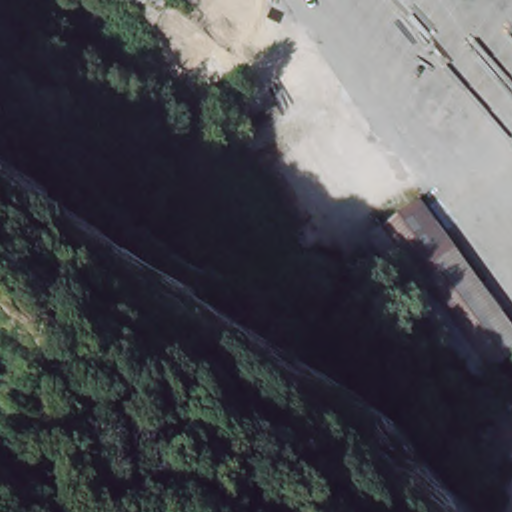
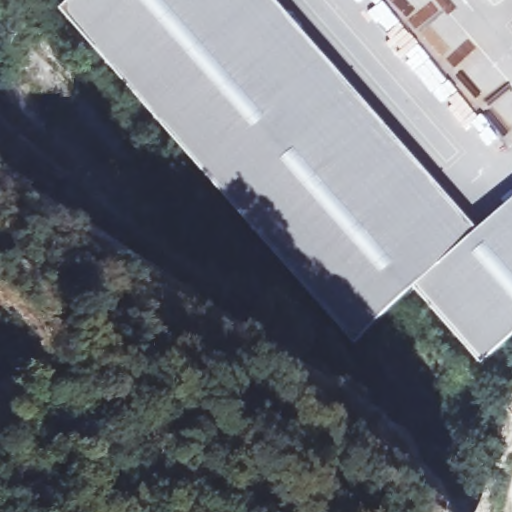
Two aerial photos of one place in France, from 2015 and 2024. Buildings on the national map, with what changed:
new [(60,9),(70,0),(274,0),(478,232),(512,202),(512,339),(482,366),(415,290),(354,343),(60,9)]
demolished [(424,194),(512,315),(512,355),(494,368),(500,377),(475,395),(469,386),(455,396),(348,250),(387,220),(424,194)]

